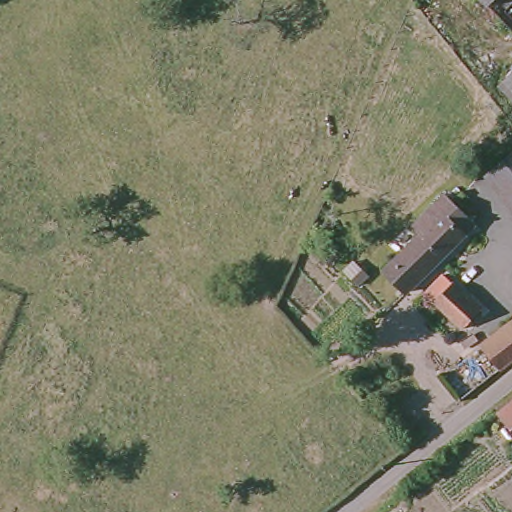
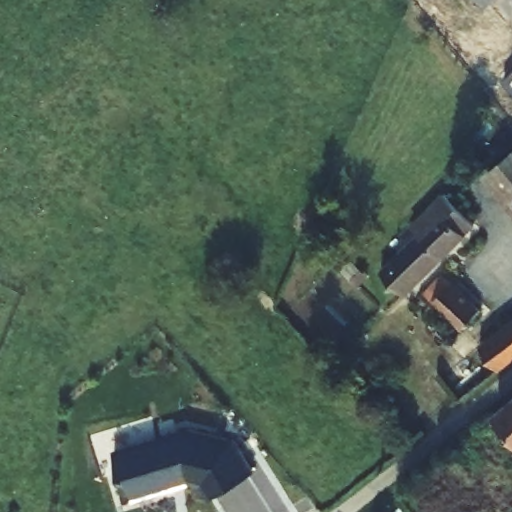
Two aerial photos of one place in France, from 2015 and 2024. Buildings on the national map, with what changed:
unchanged [(481,0),(493,0),(487,6),(481,0)]
unchanged [(499,91),(505,86),(512,79),(512,105),(499,91)]
unchanged [(488,172),(512,153),(512,201),(488,172)]
unchanged [(405,293),(384,270),(421,235),(413,227),(446,194),(476,224),(415,284),(405,293)]
unchanged [(369,276),(358,286),(345,271),(355,262),(369,276)]
unchanged [(425,298),(443,279),(452,288),(481,316),(463,334),(433,306),(425,298)]
unchanged [(499,370),(481,346),(512,322),(512,360),(499,370)]
unchanged [(512,400),(512,439),(493,417),(512,400)]
new [(205,484),(192,481),(135,498),(130,479),(125,480),(116,451),(190,428),(237,439),(257,472),(213,498),(205,484)]

